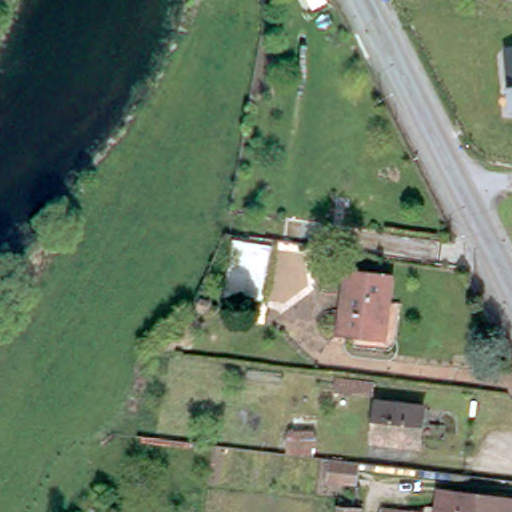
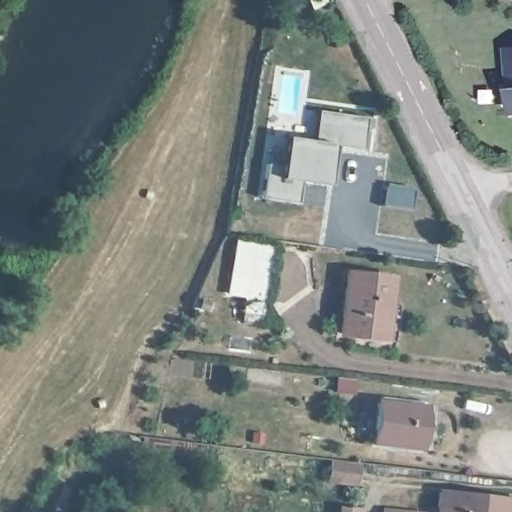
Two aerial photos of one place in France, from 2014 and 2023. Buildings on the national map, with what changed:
unchanged [(512,91),(509,51),(512,51),(512,91)]
new [(264,162),(279,163),(283,133),(313,135),(316,108),(363,114),(361,147),(329,145),(325,181),(299,178),(297,199),(260,198),(264,162)]
unchanged [(268,295),(234,290),(242,243),(276,248),(268,295)]
unchanged [(389,341),(348,336),(354,276),(396,281),(389,341)]
unchanged [(370,393),(336,388),(338,377),(373,382),(370,393)]
unchanged [(420,445),(374,440),(378,401),(424,408),(420,445)]
unchanged [(512,504),(512,512),(443,512),(444,496),(512,504)]
unchanged [(385,512),(386,507),(427,512),(385,512)]
unchanged [(361,511),(361,512),(338,512),(339,508),(361,511)]

